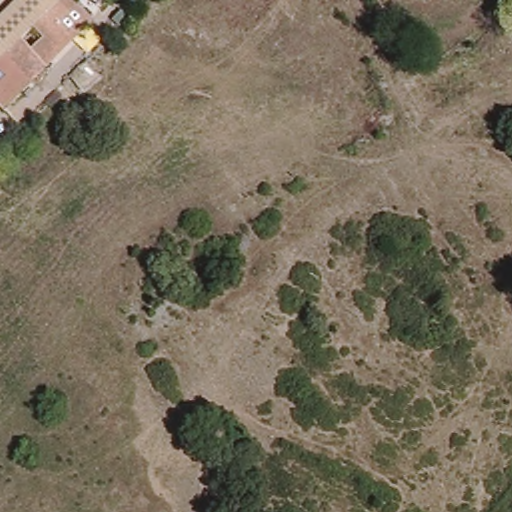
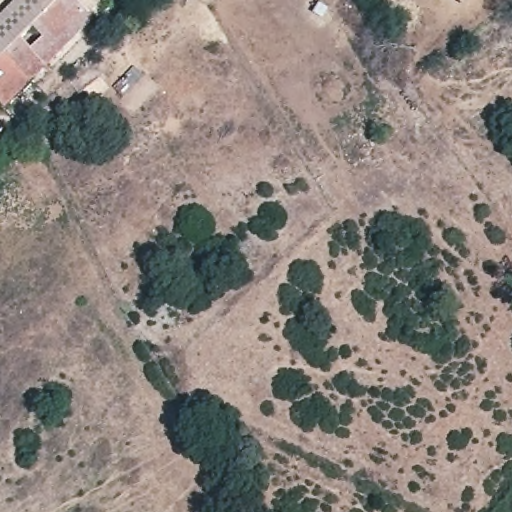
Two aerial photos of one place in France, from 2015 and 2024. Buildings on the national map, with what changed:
unchanged [(0,89),(0,22),(22,0),(93,0),(102,9),(11,100),(0,89)]

